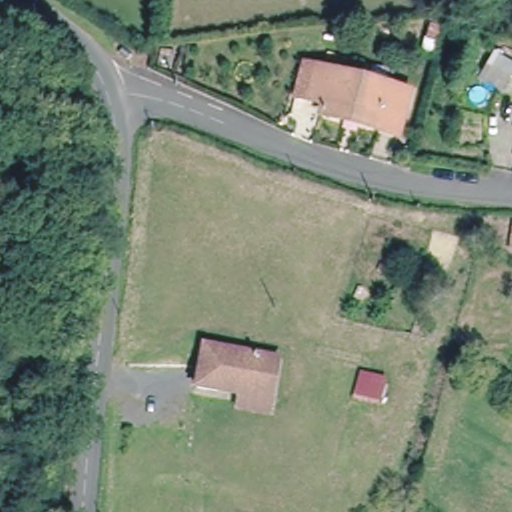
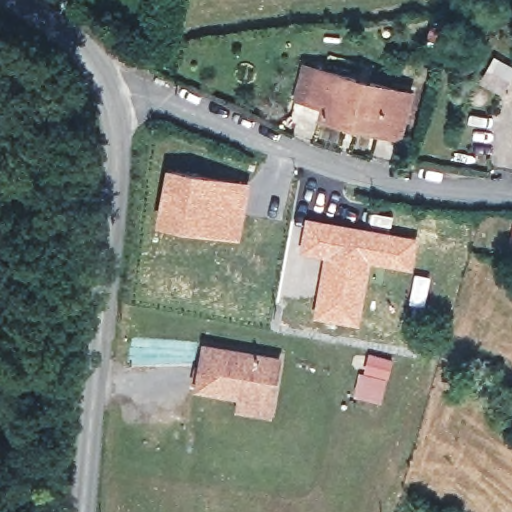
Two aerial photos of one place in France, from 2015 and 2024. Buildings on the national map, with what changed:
unchanged [(421,92),(410,133),(332,114),(336,102),(307,95),(316,63),(421,92)]
new [(165,165),(251,182),(240,238),(156,222),(165,165)]
new [(306,215),(375,227),(418,237),(412,268),(372,262),(361,322),(312,313),(323,256),(298,251),(306,215)]
new [(415,272),(431,277),(424,307),(408,303),(415,272)]
unchanged [(241,406),(243,392),(200,384),(209,340),(282,354),(274,398),(272,411),(241,406)]
new [(360,371),(362,372),(368,352),(393,360),(380,402),(353,395),(360,371)]
unchanged [(512,368),(502,383),(485,372),(496,355),(512,365),(512,368)]
unchanged [(410,512),(406,512),(407,510),(410,512)]

